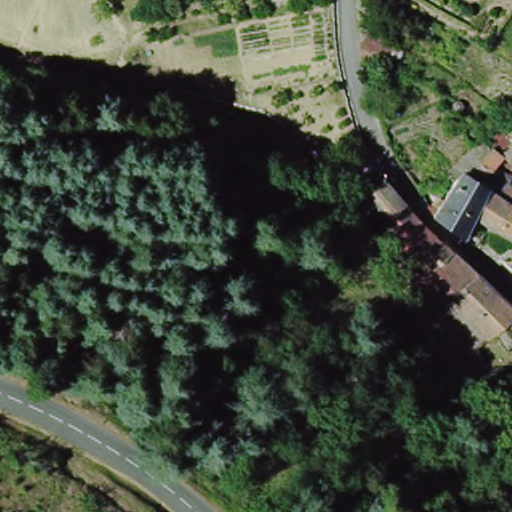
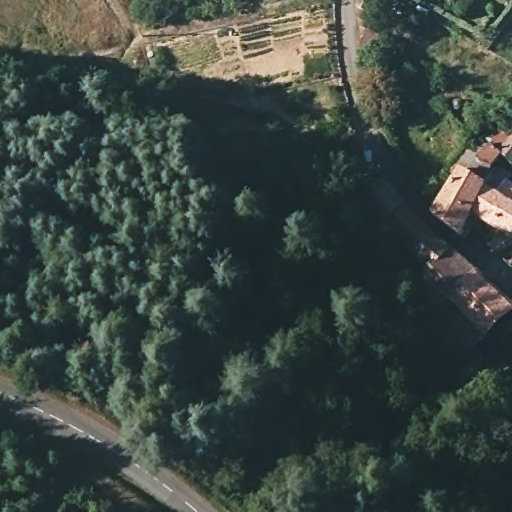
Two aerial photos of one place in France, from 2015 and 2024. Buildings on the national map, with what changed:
unchanged [(388,15),(372,14),(373,0),(391,0),(390,6),(388,15)]
unchanged [(400,63),(378,53),(378,49),(384,36),(407,49),(400,63)]
unchanged [(483,173),(477,168),(488,152),(479,142),(512,112),(512,173),(495,157),(483,173)]
unchanged [(472,225),(469,223),(464,230),(457,239),(432,216),(458,178),(462,180),(465,183),(467,184),(472,187),(477,181),(483,173),(507,191),(503,196),(512,203),(512,241),(508,249),(506,247),(497,253),(487,255),(478,253),(490,236),(483,232),(480,229),(475,227),(472,225)]
unchanged [(236,187),(228,201),(210,191),(217,176),(236,187)]
unchanged [(408,292),(422,281),(407,263),(392,245),(382,232),(362,205),(385,187),(405,213),(416,225),(432,242),(448,258),(468,279),(445,304),(432,317),(408,292)]
unchanged [(512,263),(512,266),(510,265),(512,263)]
unchanged [(485,343),(445,304),(468,279),(509,318),(485,343)]

